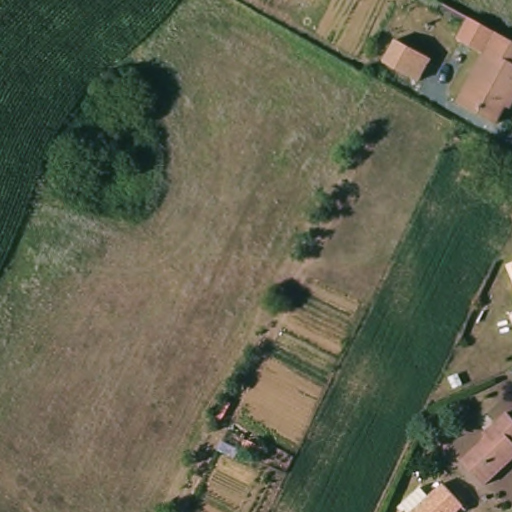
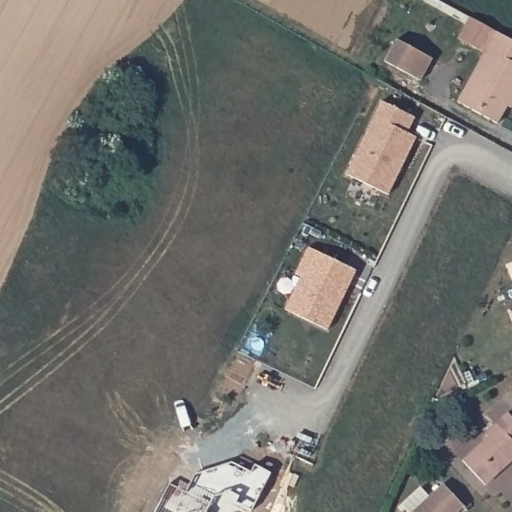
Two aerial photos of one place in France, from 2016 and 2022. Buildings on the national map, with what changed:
unchanged [(499,118),(459,97),(482,53),(457,36),(469,9),(499,25),(509,31),(512,33),(512,101),(510,100),(499,118)]
new [(397,39),(432,58),(420,80),(385,61),(397,39)]
new [(381,101),(415,117),(407,132),(415,137),(388,194),(346,174),(381,101)]
new [(295,274),(308,247),(347,266),(356,270),(348,288),(328,329),(285,309),(301,277),(295,274)]
unchanged [(484,480),(461,455),(486,431),(483,427),(505,405),(512,413),(512,454),(497,468),(484,480)]
unchanged [(403,505),(425,483),(434,491),(448,477),(469,500),(457,512),(403,512),(406,508),(403,505)]

